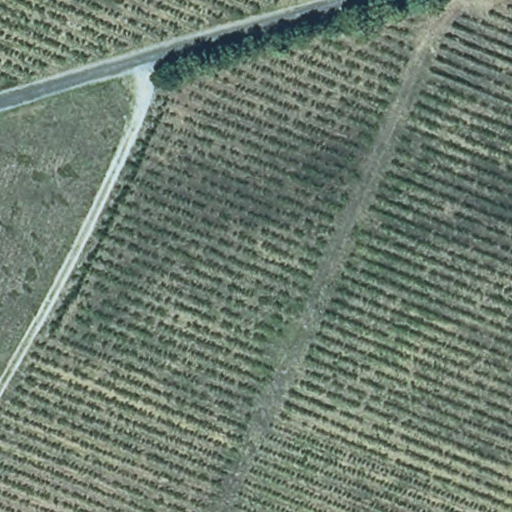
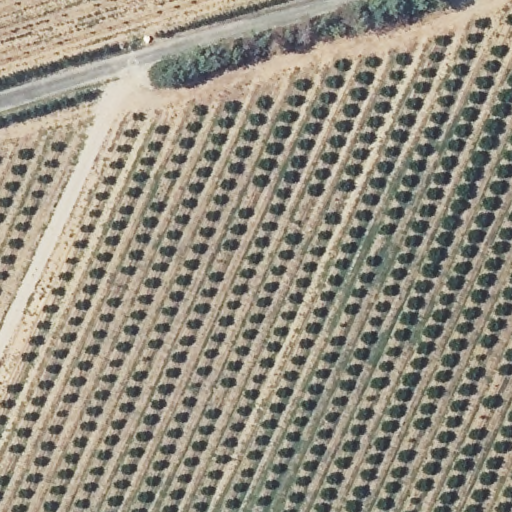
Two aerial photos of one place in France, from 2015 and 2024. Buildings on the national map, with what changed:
unchanged [(476,0),(483,0),(477,2),(476,0)]

